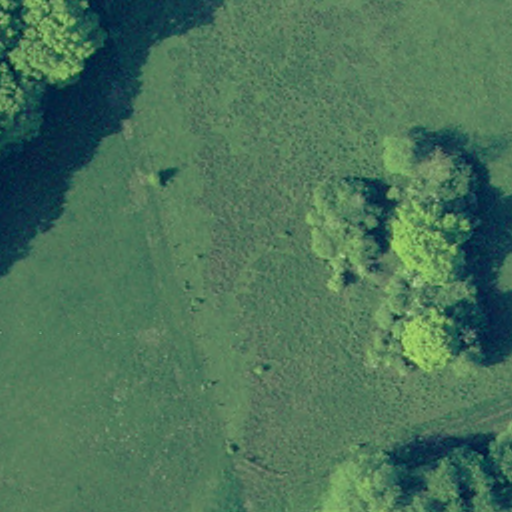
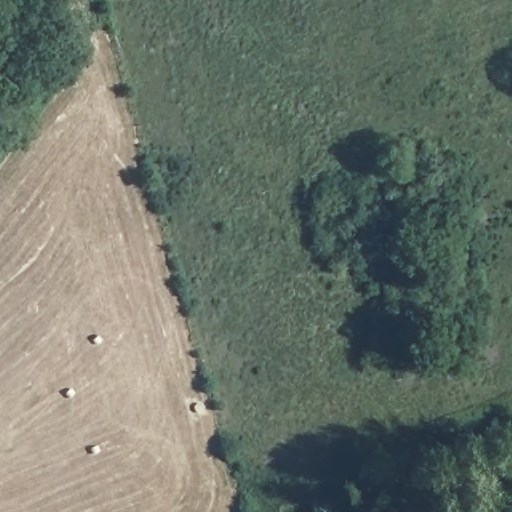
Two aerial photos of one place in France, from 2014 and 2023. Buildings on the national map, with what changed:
[]

